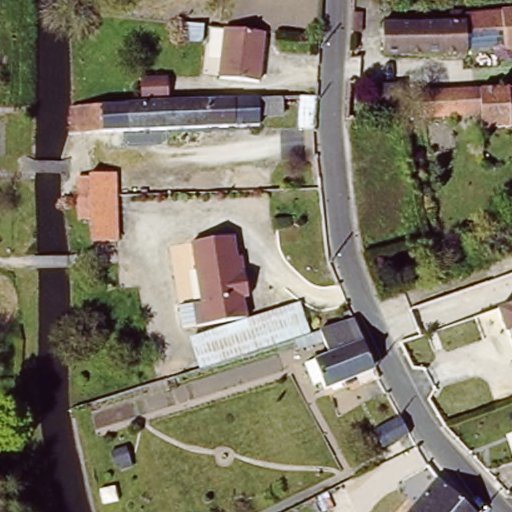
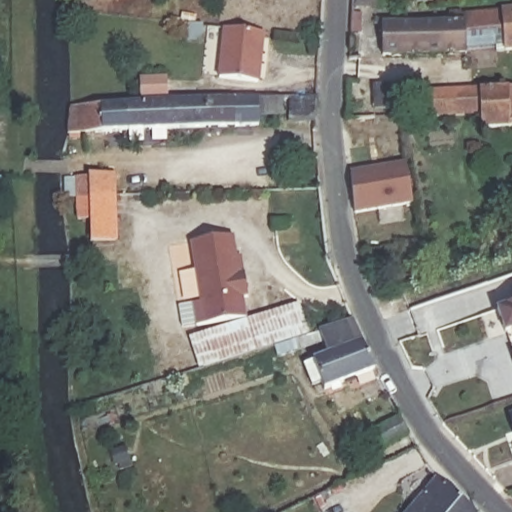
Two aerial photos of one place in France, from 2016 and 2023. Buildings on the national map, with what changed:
unchanged [(423,0),(446,0),(424,1),(423,0)]
unchanged [(493,48),(463,51),(463,55),(381,57),(379,24),(446,24),(446,12),(457,12),(458,15),(512,11),(512,51),(494,52),(493,48)]
unchanged [(263,32),(257,83),(218,78),(223,28),(263,32)]
unchanged [(93,52),(91,68),(73,66),(75,51),(93,52)]
unchanged [(142,81),(169,80),(169,102),(277,98),(278,116),(255,116),(255,126),(64,134),(65,106),(143,103),(142,81)]
unchanged [(512,89),(512,128),(507,128),(478,129),(477,115),(419,118),(419,92),(504,89),(512,89)]
new [(418,203),(358,215),(353,174),(410,163),(418,203)]
unchanged [(85,242),(85,220),(74,220),(73,199),(73,178),(84,178),(83,175),(110,174),(112,219),(113,241),(85,242)]
unchanged [(196,325),(193,303),(201,302),(193,242),(236,236),(241,273),(246,272),(249,296),(244,297),(247,319),(196,325)]
unchanged [(309,333),(204,368),(201,359),(194,338),(300,304),(306,324),(309,333)]
unchanged [(503,335),(495,312),(512,306),(512,362),(511,359),(503,335)]
unchanged [(306,370),(316,366),(331,360),(321,335),(354,324),(376,375),(326,394),(324,387),(314,390),(306,370)]
unchanged [(512,416),(512,433),(508,418),(512,416)]
unchanged [(411,433),(392,443),(384,427),(402,418),(411,433)]
unchanged [(433,478),(469,512),(405,512),(433,478)]

